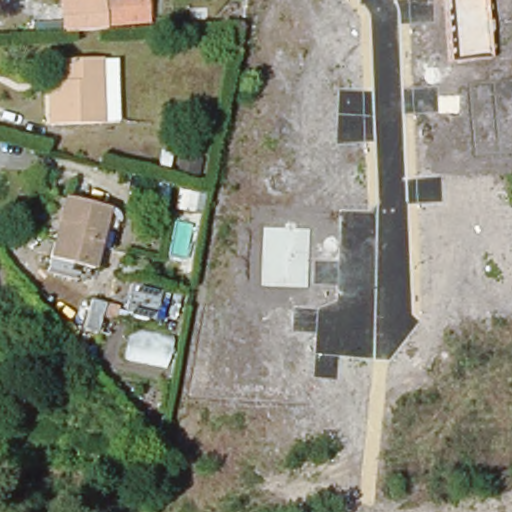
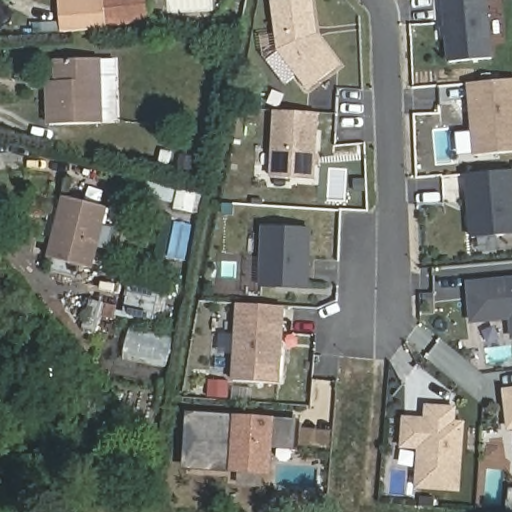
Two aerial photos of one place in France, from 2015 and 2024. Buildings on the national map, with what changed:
unchanged [(117,0),(146,0),(148,25),(61,34),(60,0),(106,0),(106,1),(117,0)]
new [(342,65),(310,91),(278,51),(272,0),(315,0),(319,34),(342,65)]
unchanged [(451,62),(445,0),(488,0),(493,57),(451,62)]
unchanged [(61,83),(73,83),(73,62),(114,60),(116,122),(74,123),(64,124),(61,83)]
unchanged [(477,157),(470,83),(512,80),(512,154),(477,157)]
new [(317,154),(322,155),(321,166),(316,166),(315,181),(270,178),(274,110),(320,113),(317,154)]
new [(512,170),(512,235),(473,238),(467,174),(512,170)]
unchanged [(48,267),(64,194),(103,205),(86,276),(48,267)]
unchanged [(309,287),(262,286),(265,227),(312,229),(309,287)]
new [(512,277),(512,340),(510,320),(472,323),(468,280),(512,277)]
unchanged [(164,291),(156,322),(122,314),(131,284),(164,291)]
new [(234,380),(238,304),(286,306),(281,384),(234,380)]
new [(130,328),(172,337),(166,366),(125,358),(130,328)]
new [(512,387),(512,430),(509,430),(503,388),(512,387)]
new [(461,492),(415,489),(418,450),(402,449),(405,416),(424,417),(426,404),(459,406),(457,420),(467,421),(461,492)]
new [(187,411),(299,419),(297,449),(274,448),(272,475),(183,469),(187,411)]

